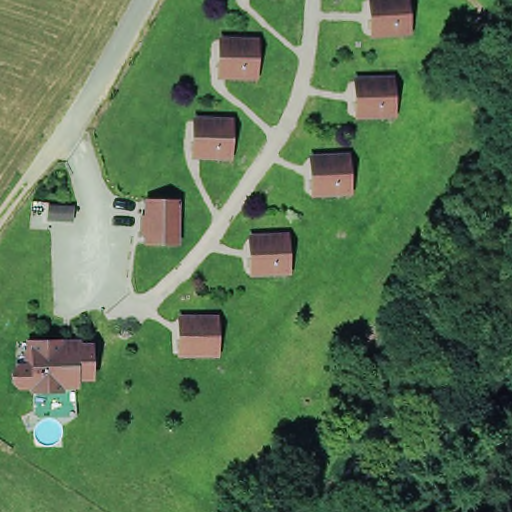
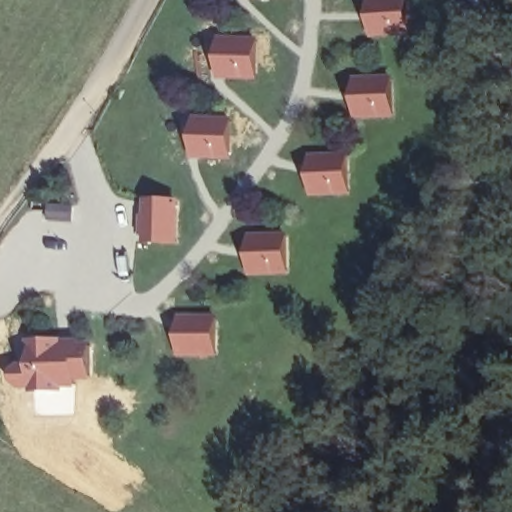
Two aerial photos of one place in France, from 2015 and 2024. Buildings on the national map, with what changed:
unchanged [(370,0),(407,0),(409,27),(380,29),(373,29),(370,0)]
unchanged [(255,76),(227,75),(220,75),(222,40),(230,41),(258,43),(255,76)]
unchanged [(356,80),(364,80),(392,80),(393,115),(365,116),(357,116),(356,80)]
unchanged [(230,156),(202,155),(195,155),(195,121),(203,121),(232,122),(230,156)]
unchanged [(312,159),(320,159),(348,157),(349,191),(321,192),(313,193),(312,159)]
unchanged [(50,219),(50,205),(72,206),(72,220),(50,219)]
unchanged [(177,207),(176,246),(149,246),(150,207),(177,207)]
unchanged [(285,236),(288,271),(260,272),(252,273),(250,238),(258,237),(285,236)]
unchanged [(180,318),(188,318),(217,319),(216,353),(188,353),(180,353),(180,318)]
unchanged [(20,385),(15,380),(15,371),(20,367),(30,367),(29,341),(61,341),(61,346),(92,346),(92,376),(77,376),(77,384),(62,384),(62,390),(35,390),(36,385),(20,385)]

